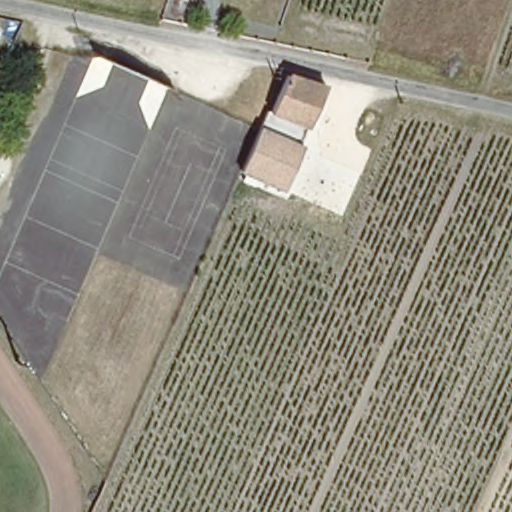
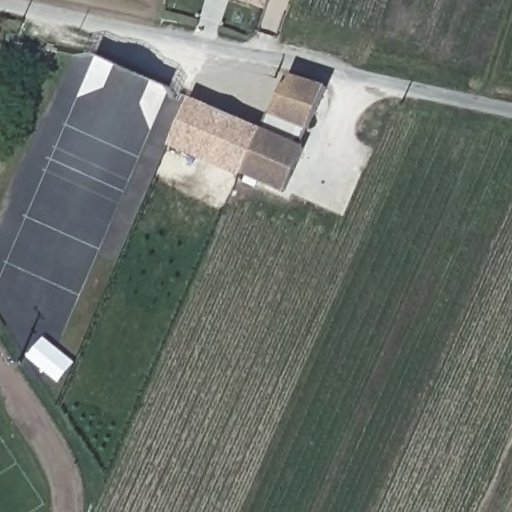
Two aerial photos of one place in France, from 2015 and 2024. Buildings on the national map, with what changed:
new [(244,0),(271,0),(268,8),(244,0)]
unchanged [(4,61),(0,69),(0,59),(4,61)]
unchanged [(300,147),(262,131),(287,76),(327,87),(300,147)]
new [(243,174),(169,144),(189,97),(262,131),(243,174)]
unchanged [(282,192),(243,174),(262,131),(300,147),(282,192)]

